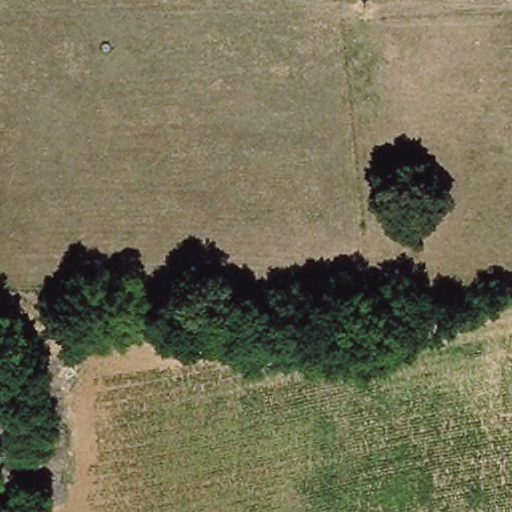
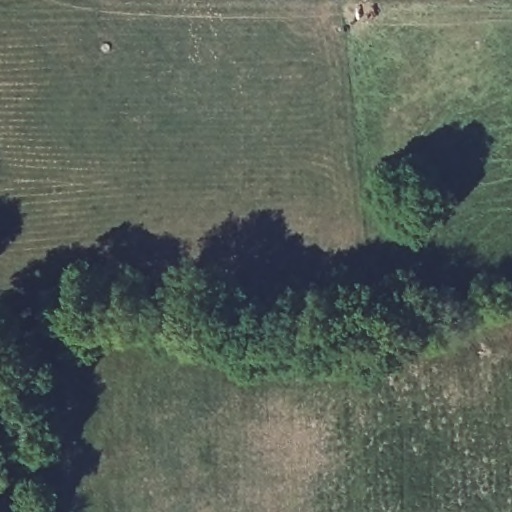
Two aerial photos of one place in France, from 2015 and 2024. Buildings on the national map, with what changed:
[]

